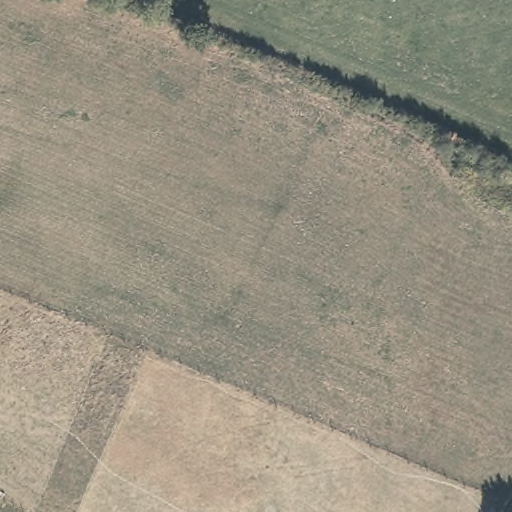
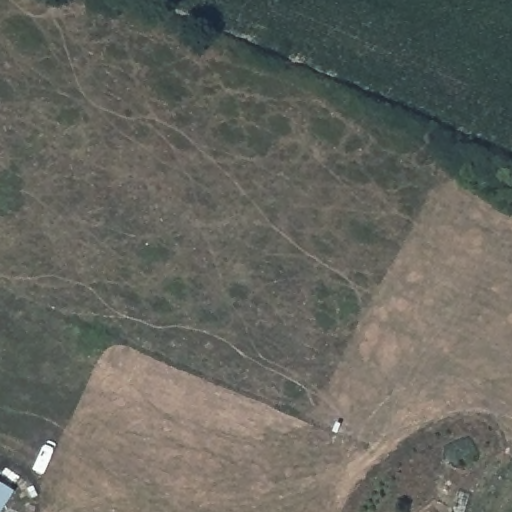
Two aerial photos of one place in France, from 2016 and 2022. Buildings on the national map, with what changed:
new [(3,512),(0,512),(0,480),(17,492),(3,512)]

